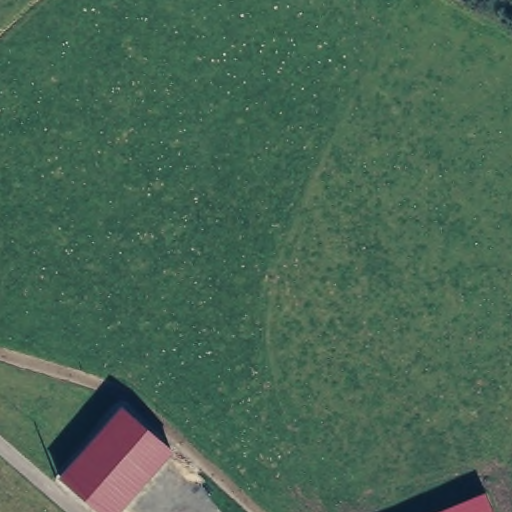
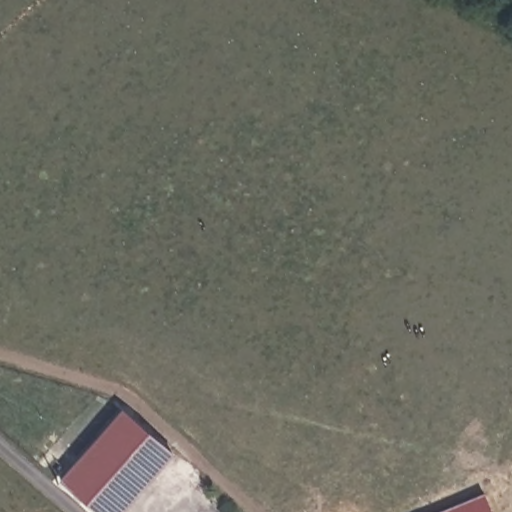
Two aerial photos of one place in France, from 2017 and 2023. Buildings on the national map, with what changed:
unchanged [(116,512),(97,512),(56,478),(118,407),(171,451),(116,512)]
unchanged [(493,512),(439,512),(486,493),(493,512)]

